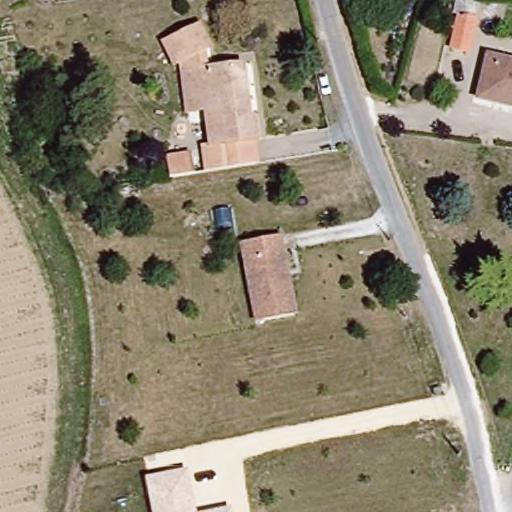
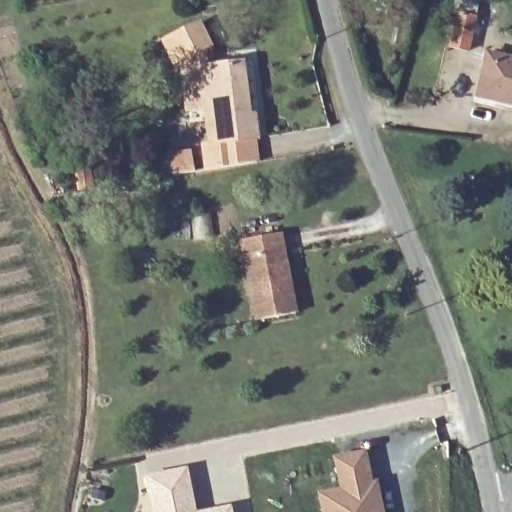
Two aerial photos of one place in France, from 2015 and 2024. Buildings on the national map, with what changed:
unchanged [(461,55),(445,52),(452,20),(467,22),(461,55)]
unchanged [(206,172),(204,150),(215,148),(206,100),(187,104),(182,75),(187,75),(186,56),(167,62),(161,45),(195,31),(203,46),(197,53),(198,71),(234,66),(238,91),(232,93),(238,117),(247,115),(257,163),(206,172)]
unchanged [(470,99),(480,55),(512,62),(512,107),(470,99)]
unchanged [(171,179),(167,158),(192,154),(195,175),(171,179)]
unchanged [(295,319),(257,327),(240,249),(278,241),(295,319)]
new [(374,482),(378,481),(384,512),(322,512),(318,493),(338,489),(333,458),(368,450),(374,482)]
unchanged [(197,512),(152,512),(145,477),(189,468),(197,512)]
unchanged [(233,512),(204,512),(232,506),(233,512)]

